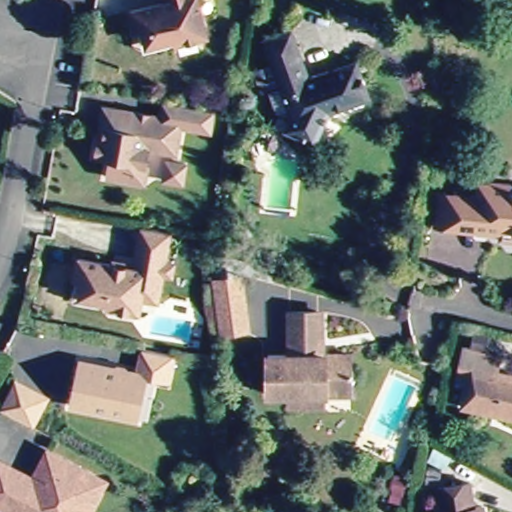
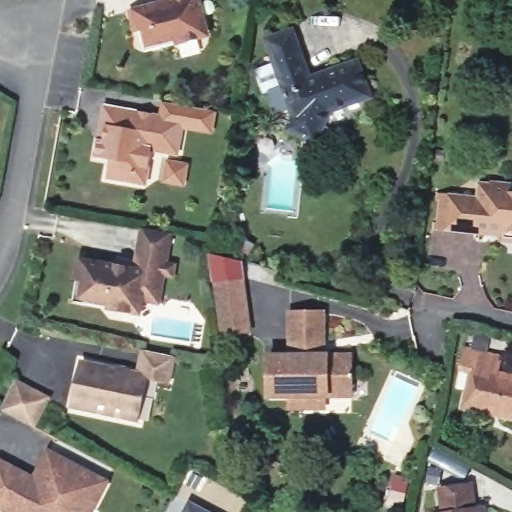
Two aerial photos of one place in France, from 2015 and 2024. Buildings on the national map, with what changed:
unchanged [(176,43),(175,38),(150,44),(146,26),(134,29),(129,9),(165,1),(165,0),(199,0),(202,14),(207,35),(198,38),(176,43)]
unchanged [(317,74),(332,69),(359,59),(372,99),(335,110),(319,145),(286,129),(293,111),(291,106),(279,111),(272,90),(265,93),(257,68),(276,62),(272,50),(268,39),(296,30),(300,41),(313,75),(317,74)]
unchanged [(219,114),(215,134),(182,128),(183,123),(158,118),(161,103),(219,114)]
unchanged [(134,183),(107,178),(110,160),(95,157),(99,139),(101,125),(105,107),(158,118),(183,123),(182,128),(177,156),(152,151),(148,168),(145,185),(134,183)]
unchanged [(166,164),(187,167),(184,188),(162,183),(166,164)]
unchanged [(501,232),(487,229),(475,228),(474,234),(468,233),(450,229),(435,227),(441,195),(455,198),(474,201),(479,202),(482,185),(495,188),(495,184),(512,187),(512,193),(512,242),(499,240),(501,232)]
unchanged [(130,311),(108,307),(72,301),(76,279),(80,259),(115,264),(116,259),(136,263),(142,230),(143,228),(150,229),(172,233),(171,241),(167,260),(176,262),(174,273),(165,272),(160,299),(147,298),(144,314),(130,311)]
unchanged [(242,274),(252,332),(221,337),(212,278),(242,274)]
unchanged [(305,408),(292,409),(291,396),(270,398),(266,358),(288,356),(284,313),(313,310),(318,309),(322,353),(348,350),(351,390),(324,393),(325,406),(305,408)]
unchanged [(497,352),(493,370),(512,374),(512,416),(459,406),(467,367),(455,364),(460,344),(497,352)]
unchanged [(141,373),(147,349),(151,349),(178,356),(172,381),(150,376),(141,419),(75,404),(85,360),(141,373)]
unchanged [(1,411),(16,383),(47,399),(32,428),(1,411)]
unchanged [(0,505),(0,462),(1,460),(36,479),(50,451),(108,481),(92,512),(70,512),(14,512),(0,505)]
unchanged [(469,484),(472,504),(484,503),(486,512),(439,512),(435,489),(469,484)]
new [(186,499),(213,512),(180,512),(186,499)]

